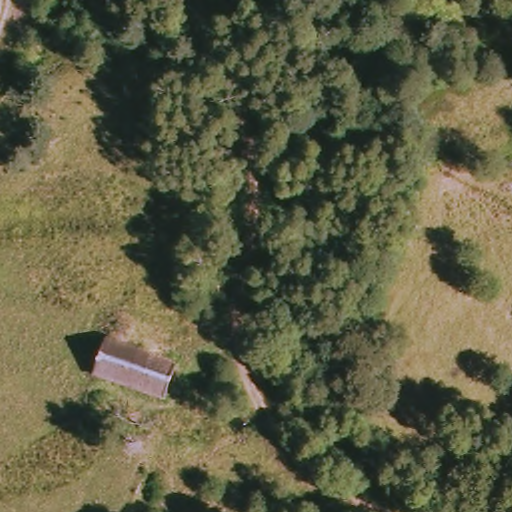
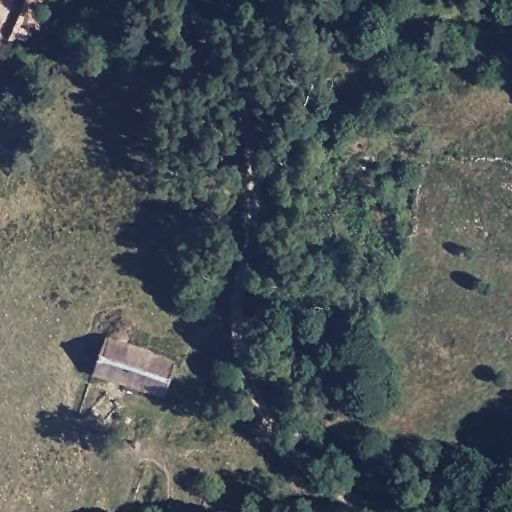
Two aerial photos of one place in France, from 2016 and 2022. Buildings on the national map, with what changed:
unchanged [(178,362),(163,399),(98,378),(101,338),(112,338),(113,320),(131,321),(129,343),(178,362)]

